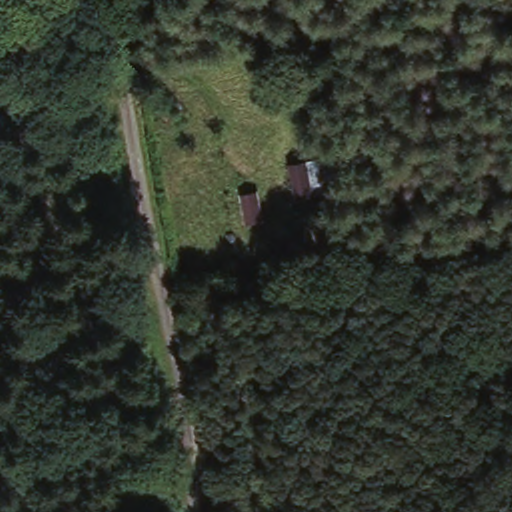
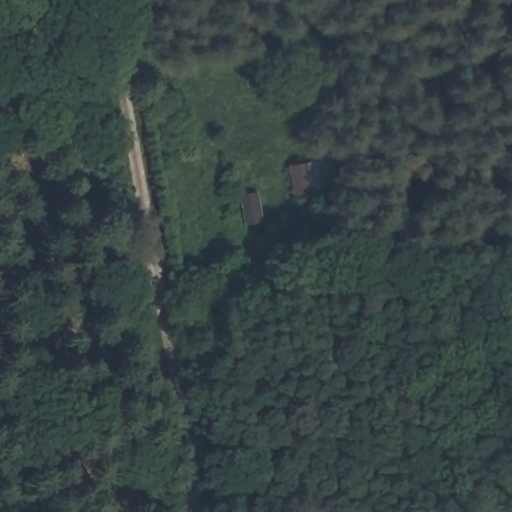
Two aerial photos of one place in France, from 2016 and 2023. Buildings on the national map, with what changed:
unchanged [(319,165),(324,199),(307,199),(302,167),(319,165)]

